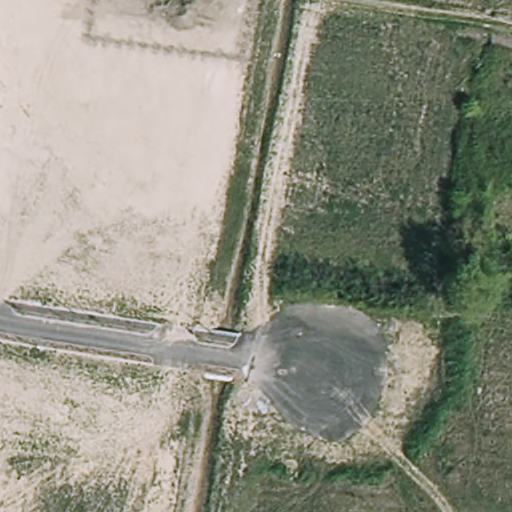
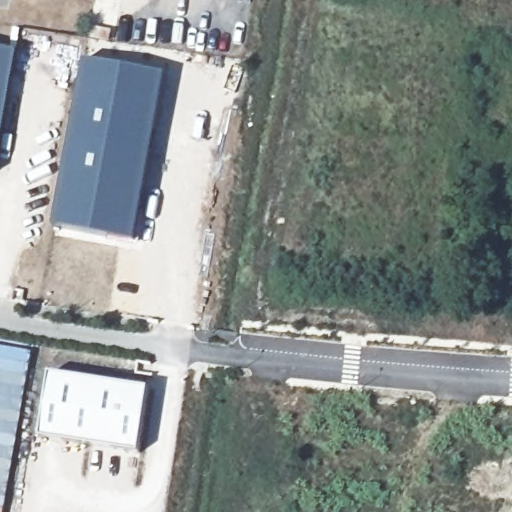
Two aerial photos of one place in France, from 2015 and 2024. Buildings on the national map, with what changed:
new [(20,52),(0,153),(0,49),(20,52)]
new [(167,75),(137,244),(55,228),(87,62),(167,75)]
new [(5,512),(0,512),(0,345),(34,350),(5,512)]
new [(48,369),(147,384),(137,449),(38,434),(48,369)]

